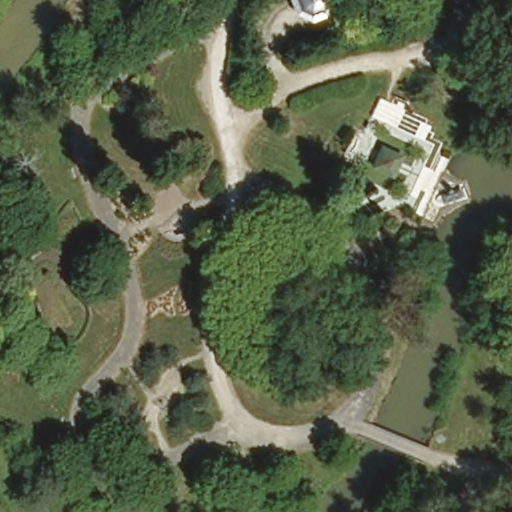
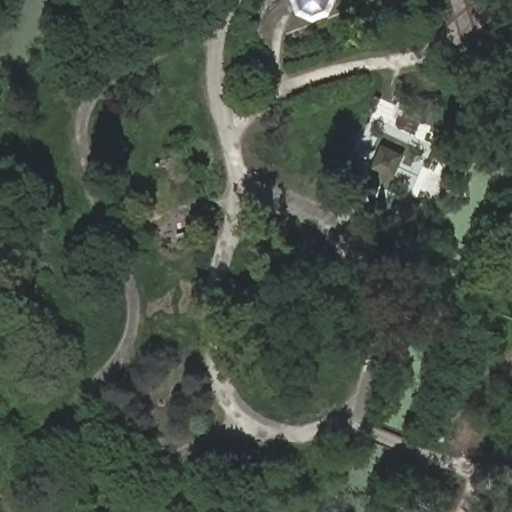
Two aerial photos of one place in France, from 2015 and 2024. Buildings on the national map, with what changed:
unchanged [(322,14),(308,21),(294,13),(294,0),(322,0),(322,14)]
unchanged [(392,182),(368,168),(384,142),(407,157),(392,182)]

